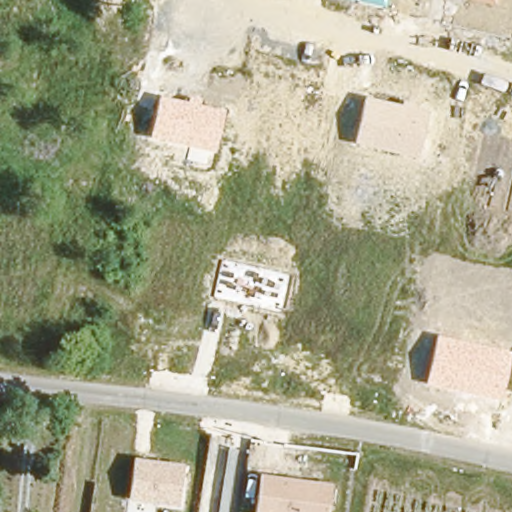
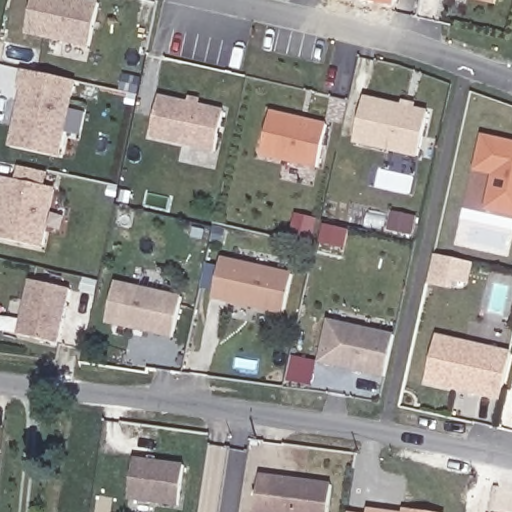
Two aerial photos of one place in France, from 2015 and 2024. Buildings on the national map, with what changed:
new [(33,0),(88,0),(100,3),(91,49),(26,34),(33,0)]
new [(366,0),(395,0),(394,6),(366,0)]
unchanged [(475,0),(497,0),(496,5),(475,0)]
new [(62,158),(10,147),(26,71),(77,81),(62,158)]
unchanged [(225,110),(216,153),(151,139),(160,96),(188,102),(190,96),(203,100),(201,106),(225,110)]
unchanged [(404,101),(415,104),(415,109),(428,111),(418,158),(354,144),(366,96),(402,105),(404,101)]
new [(261,156),(271,111),(328,124),(318,169),(261,156)]
new [(491,177),(472,173),(480,134),(512,141),(512,216),(485,211),(491,177)]
new [(42,247),(0,238),(0,216),(5,195),(0,195),(4,179),(55,190),(42,247)]
new [(455,261),(470,264),(466,281),(451,280),(450,287),(430,283),(435,257),(455,261)]
unchanged [(282,311),(213,298),(221,261),(290,275),(282,311)]
new [(18,335),(30,281),(71,290),(60,345),(18,335)]
new [(106,323),(114,282),(181,295),(172,338),(106,323)]
new [(319,364),(328,320),(394,334),(384,379),(319,364)]
unchanged [(426,384),(437,336),(512,351),(512,353),(502,400),(426,384)]
unchanged [(179,506),(129,501),(135,459),(185,465),(179,506)]
unchanged [(260,474),(332,483),(329,512),(256,512),(260,474)]
new [(366,508),(398,512),(366,512),(366,508)]
new [(412,508),(440,512),(412,512),(412,508)]
new [(351,512),(345,512),(345,511),(351,512)]

